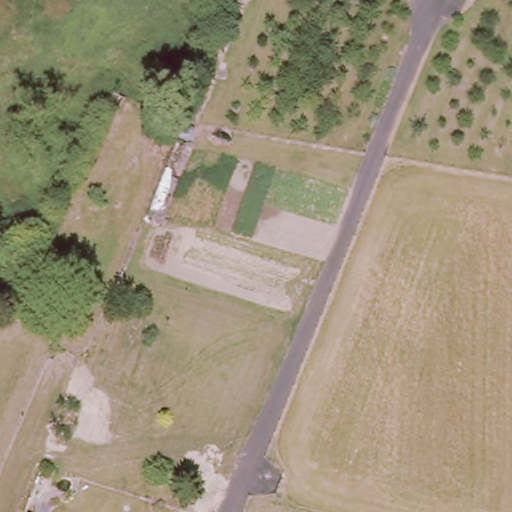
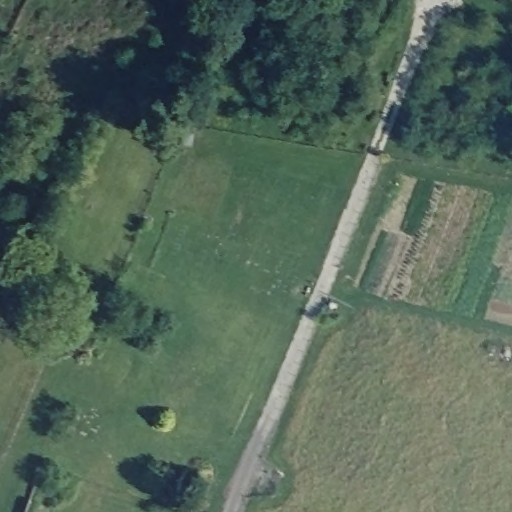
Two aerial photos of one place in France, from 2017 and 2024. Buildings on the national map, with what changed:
unchanged [(115,94),(126,98),(118,116),(107,111),(115,94)]

